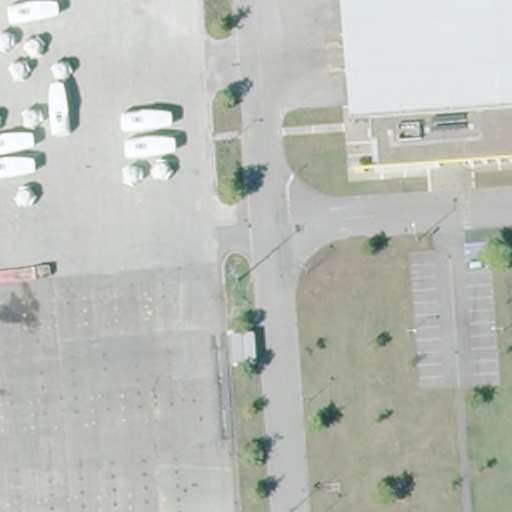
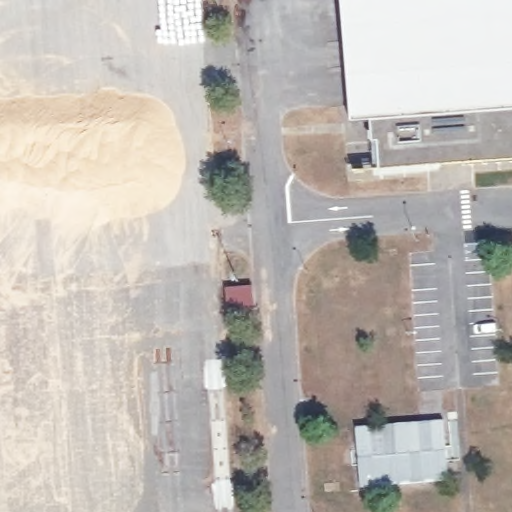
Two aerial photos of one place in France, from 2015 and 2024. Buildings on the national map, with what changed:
unchanged [(512,119),(371,122),(351,123),(341,0),(512,0),(512,119)]
unchanged [(512,119),(512,160),(461,163),(459,148),(439,150),(440,165),(380,169),(377,140),(372,141),(371,122),(512,119)]
new [(457,417),(460,458),(449,459),(451,478),(359,488),(353,426),(457,417)]

